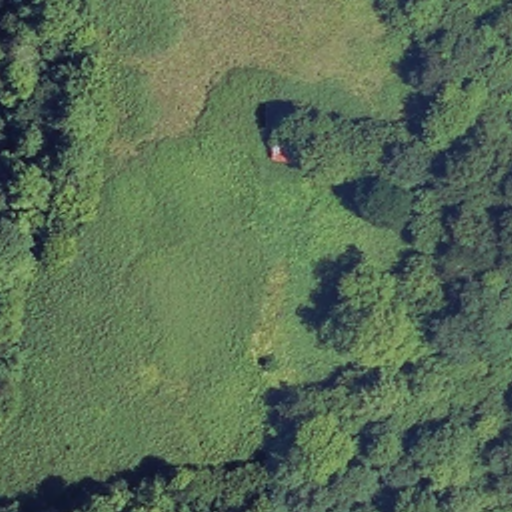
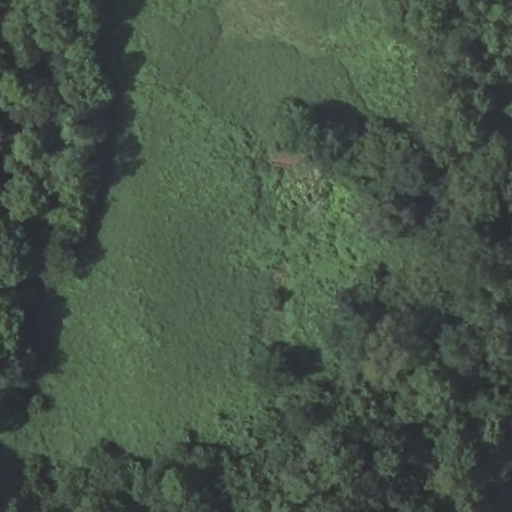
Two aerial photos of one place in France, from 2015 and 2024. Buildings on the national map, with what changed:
unchanged [(308,138),(305,170),(273,165),(278,135),(308,138)]

